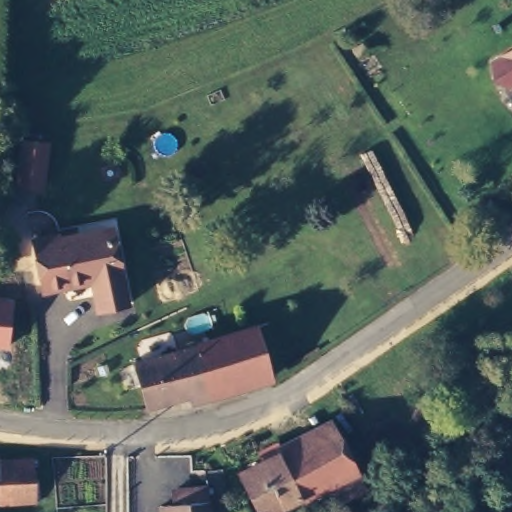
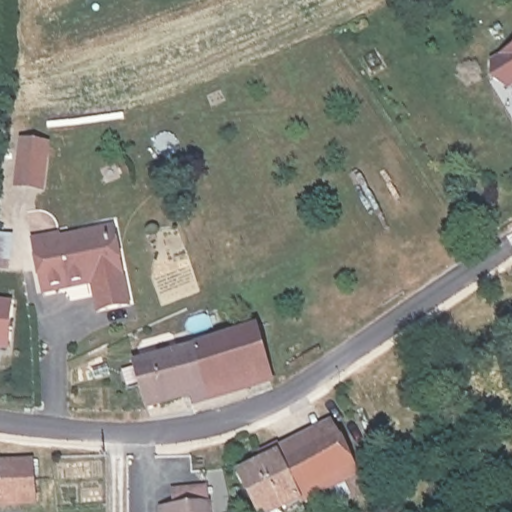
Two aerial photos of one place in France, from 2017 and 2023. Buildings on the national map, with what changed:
unchanged [(500,89),(485,67),(504,56),(500,50),(512,44),(512,82),(500,89)]
unchanged [(44,187),(13,187),(16,137),(47,141),(44,187)]
unchanged [(102,309),(97,279),(51,284),(44,240),(112,230),(120,229),(127,272),(132,305),(102,309)]
unchanged [(10,349),(0,348),(0,300),(12,301),(10,349)]
unchanged [(159,360),(157,353),(167,351),(170,357),(255,332),(268,376),(148,411),(135,366),(159,360)]
unchanged [(261,511),(242,470),(336,425),(355,466),(362,480),(335,493),(328,479),(261,511)]
unchanged [(0,504),(0,463),(36,461),(37,486),(38,501),(20,502),(0,504)]
unchanged [(167,508),(185,506),(183,491),(212,488),(214,504),(215,512),(167,512),(167,508)]

